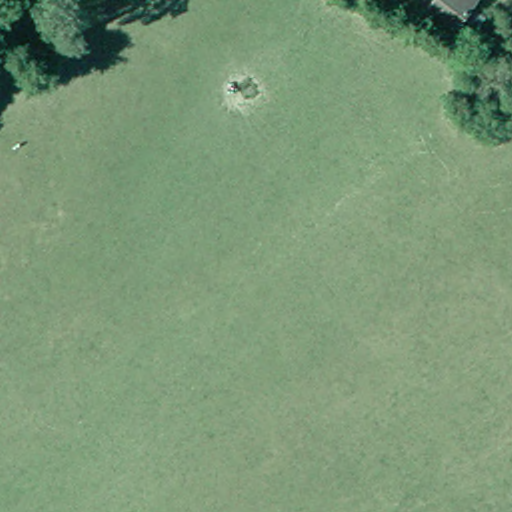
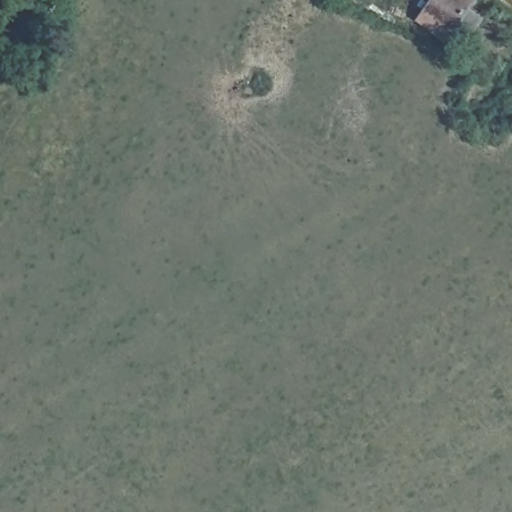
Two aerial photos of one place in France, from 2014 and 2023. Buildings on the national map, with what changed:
unchanged [(430,7),(436,0),(477,0),(479,2),(454,37),(448,32),(425,15),(430,7)]

